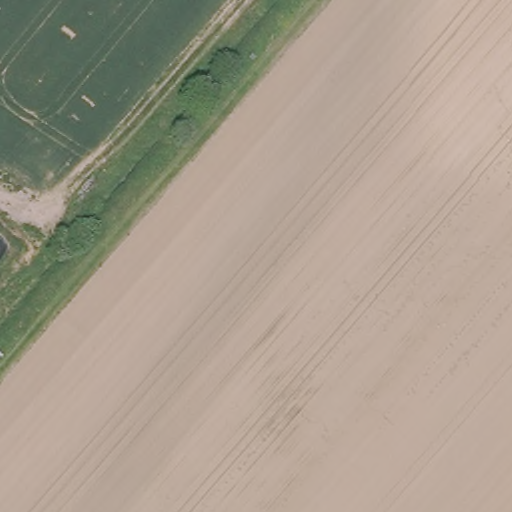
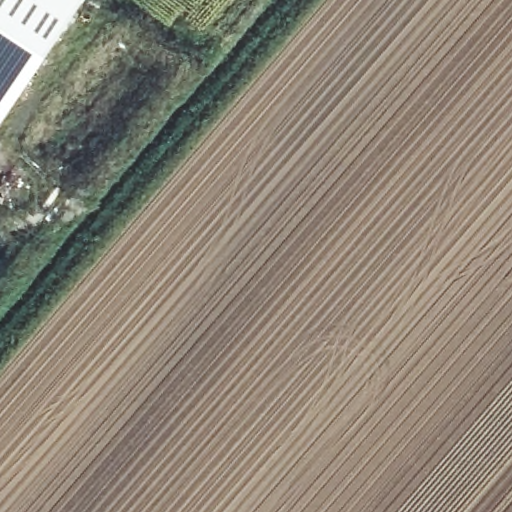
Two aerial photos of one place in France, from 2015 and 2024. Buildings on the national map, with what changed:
new [(75,0),(0,114),(0,0),(75,0)]

